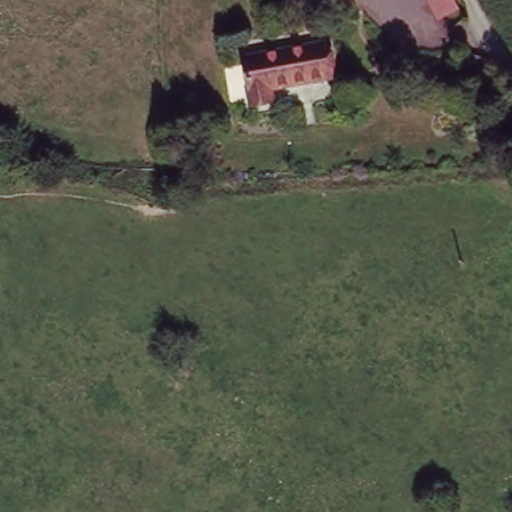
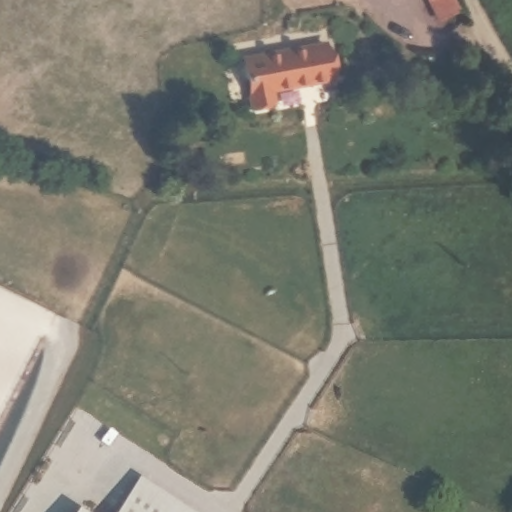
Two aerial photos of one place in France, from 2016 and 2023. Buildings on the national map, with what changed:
unchanged [(434,10),(430,0),(456,0),(459,5),(434,10)]
unchanged [(246,99),(238,54),(319,39),(325,72),(293,79),(264,84),(266,96),(246,99)]
new [(186,512),(121,512),(139,481),(186,512)]

